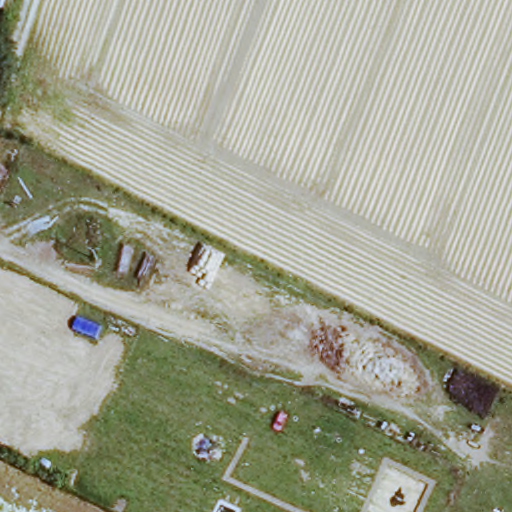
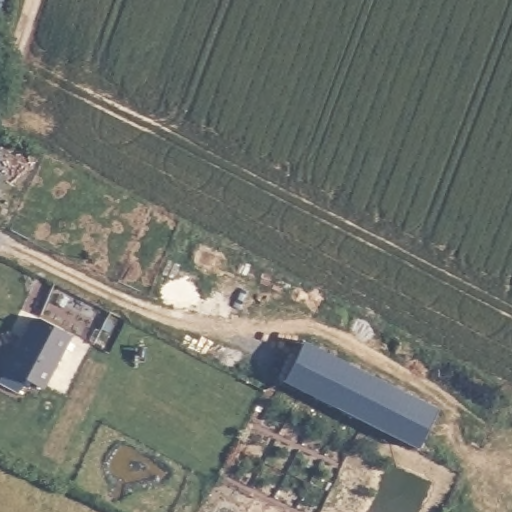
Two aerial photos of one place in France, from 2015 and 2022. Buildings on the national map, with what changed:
unchanged [(0,15),(0,0),(6,0),(0,15)]
new [(13,355),(14,356),(33,321),(39,319),(70,335),(42,388),(5,369),(13,355)]
new [(306,337),(440,406),(417,450),(283,381),(306,337)]

